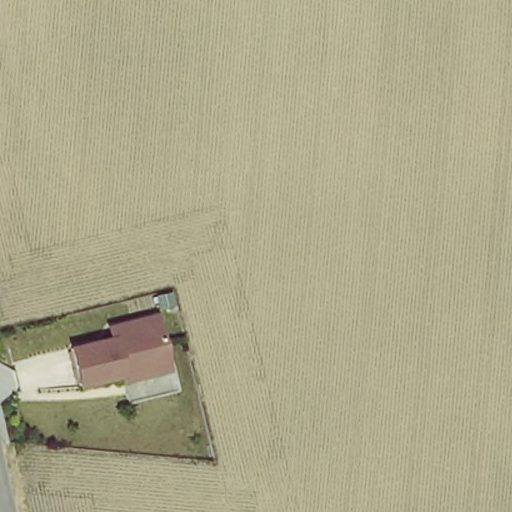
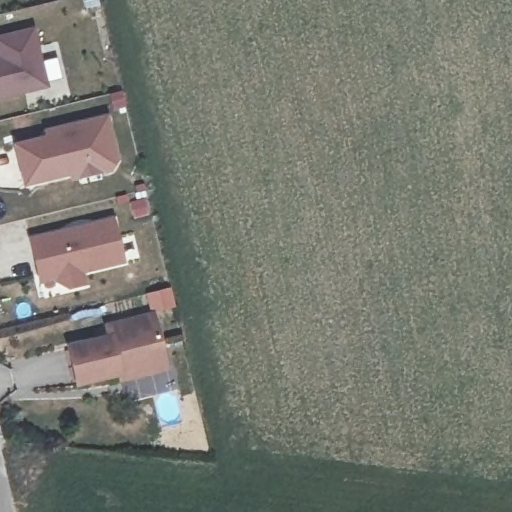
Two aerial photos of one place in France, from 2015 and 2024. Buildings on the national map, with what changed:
new [(33,27),(47,86),(0,98),(0,35),(33,27)]
new [(12,142),(43,134),(42,128),(108,113),(118,157),(110,172),(69,181),(68,176),(23,186),(12,142)]
new [(113,216),(123,261),(82,273),(85,285),(65,289),(55,280),(38,283),(28,236),(113,216)]
unchanged [(150,370),(129,375),(127,364),(117,367),(118,371),(76,382),(67,345),(108,335),(105,324),(152,313),(160,347),(165,366),(150,370)]

